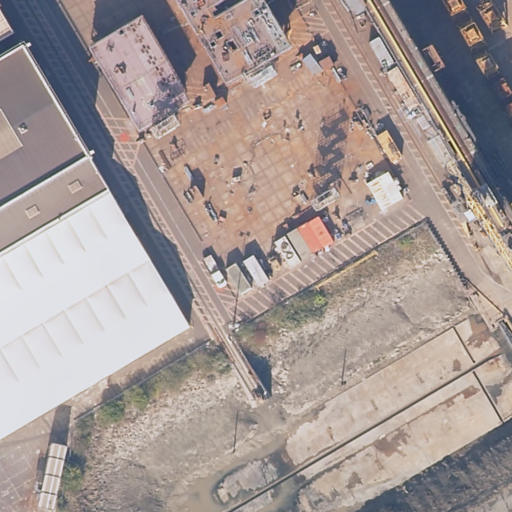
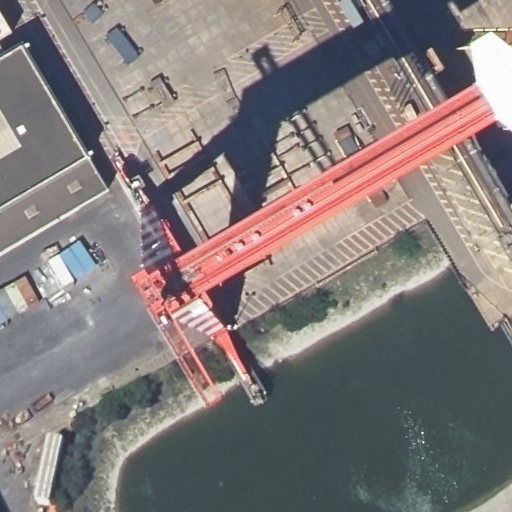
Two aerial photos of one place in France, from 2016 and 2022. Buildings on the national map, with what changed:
unchanged [(353,0),(381,0),(512,222),(512,270),(353,0)]
unchanged [(0,5),(0,4),(1,5),(0,5)]
unchanged [(0,39),(0,8),(14,31),(0,39)]
unchanged [(24,44),(110,189),(0,253),(0,58),(6,55),(24,44)]
new [(194,326),(0,440),(0,253),(110,189),(194,326)]

